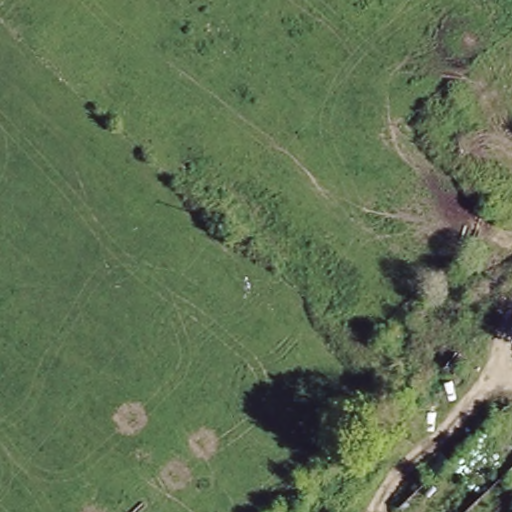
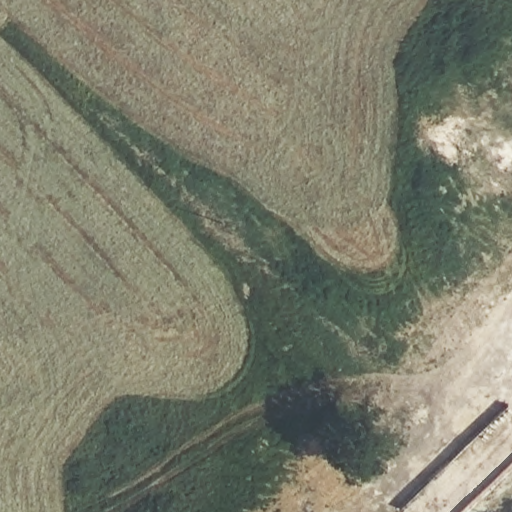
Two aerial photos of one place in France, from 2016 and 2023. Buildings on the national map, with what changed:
[]

